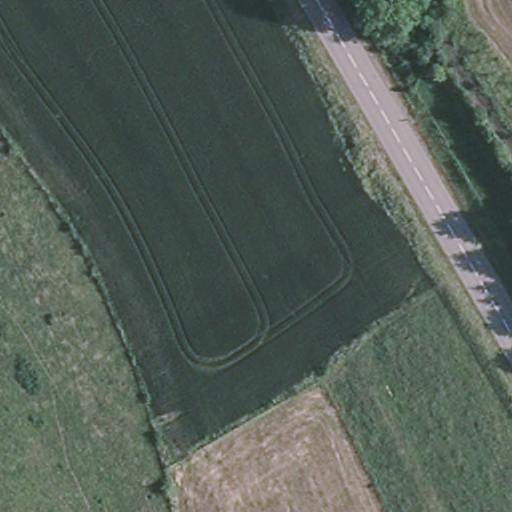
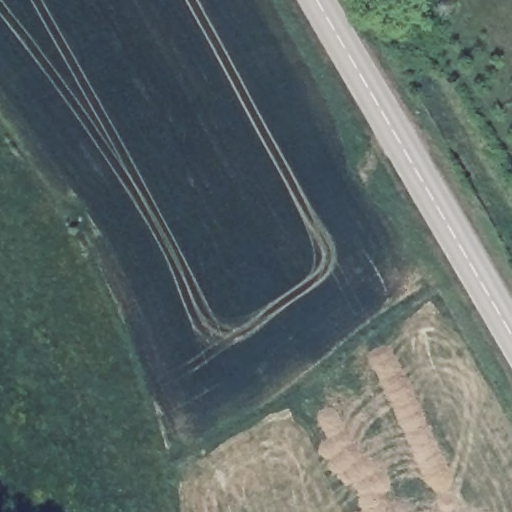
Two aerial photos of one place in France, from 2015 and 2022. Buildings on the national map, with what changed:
[]

